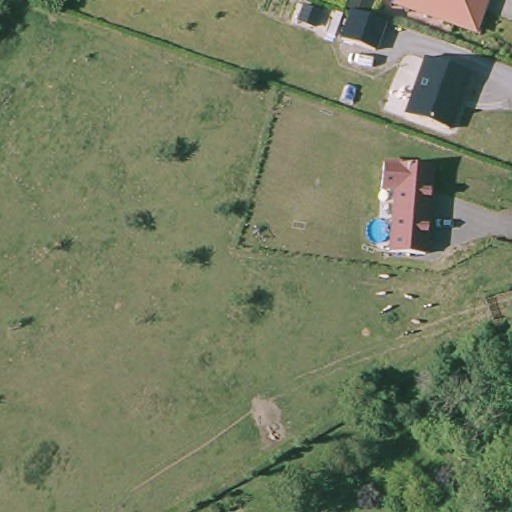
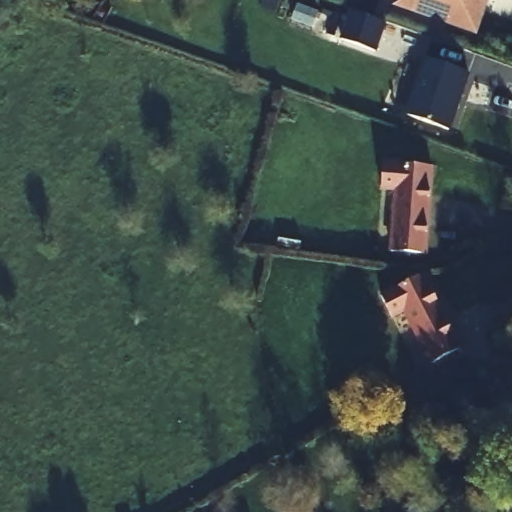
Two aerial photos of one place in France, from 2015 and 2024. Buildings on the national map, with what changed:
unchanged [(488,12),(479,33),(399,4),(400,0),(487,0),(483,10),(488,12)]
unchanged [(389,22),(379,51),(344,39),(356,10),(389,22)]
unchanged [(473,74),(452,131),(409,115),(429,58),(473,74)]
unchanged [(432,163),(428,253),(389,250),(393,191),(383,190),(384,161),(432,163)]
new [(466,342),(431,364),(403,313),(393,319),(381,297),(424,271),(466,342)]

